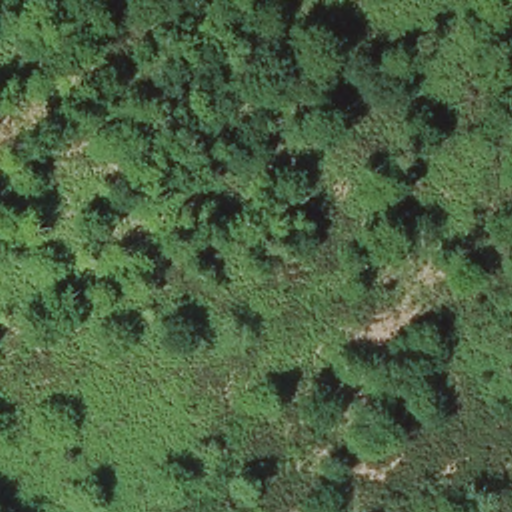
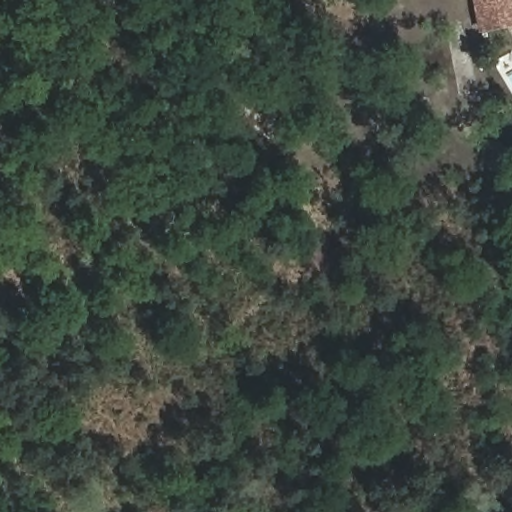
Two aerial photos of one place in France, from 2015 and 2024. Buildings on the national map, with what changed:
new [(512,0),(512,26),(478,32),(472,0),(512,0)]

